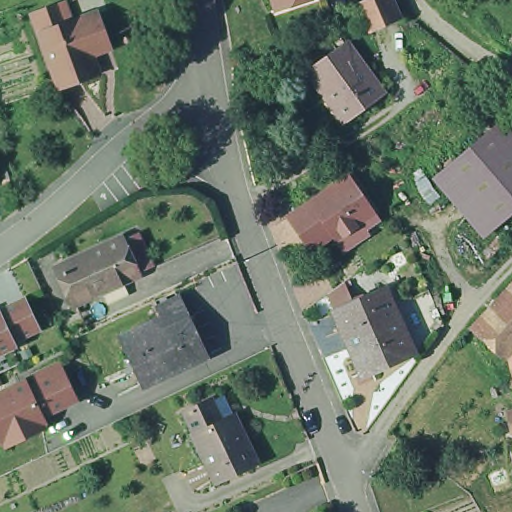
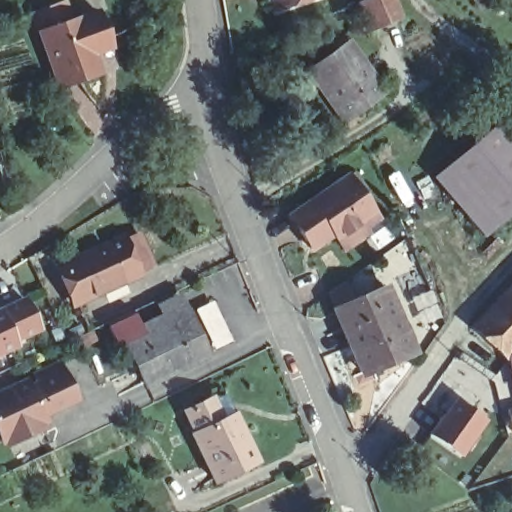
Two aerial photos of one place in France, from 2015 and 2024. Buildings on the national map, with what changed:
unchanged [(273,0),(301,0),(283,6),(276,9),(273,0)]
unchanged [(364,0),(395,0),(402,17),(373,29),(362,1),(364,0)]
unchanged [(92,66),(55,80),(36,27),(93,6),(106,37),(108,42),(87,51),(92,66)]
unchanged [(354,36),(391,89),(348,119),(311,66),(354,36)]
unchanged [(488,232),(438,175),(510,112),(512,114),(512,210),(488,232)]
unchanged [(347,169),(379,218),(366,228),(368,234),(340,253),(330,234),(307,250),(286,216),(347,169)]
unchanged [(120,237),(122,240),(136,233),(151,264),(136,271),(138,274),(75,304),(58,266),(120,237)]
unchanged [(372,365),(364,348),(355,352),(336,305),(386,284),(413,347),(372,365)]
unchanged [(474,327),(512,285),(512,353),(511,355),(508,358),(474,327)]
unchanged [(184,309),(192,306),(211,346),(152,375),(126,326),(156,311),(155,307),(178,296),(184,309)]
unchanged [(23,300),(37,329),(11,342),(13,346),(0,352),(0,311),(23,300)]
unchanged [(512,353),(512,360),(511,355),(512,353)]
unchanged [(26,376),(27,379),(60,360),(78,402),(45,418),(49,425),(1,448),(0,445),(0,389),(26,376)]
unchanged [(212,481),(190,435),(193,433),(183,411),(209,399),(220,392),(231,415),(253,462),(212,481)]
new [(490,421),(462,457),(431,438),(458,398),(490,421)]
unchanged [(512,409),(512,418),(510,409),(512,409)]

